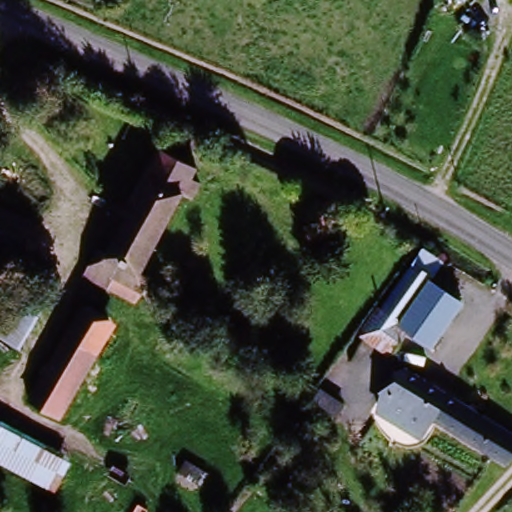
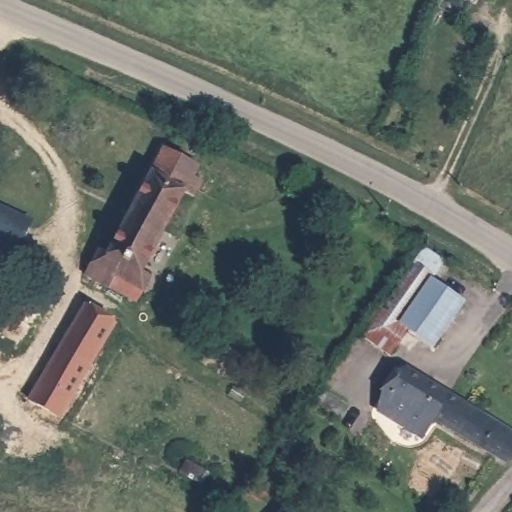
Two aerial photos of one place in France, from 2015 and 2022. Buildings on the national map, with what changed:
new [(450,0),(465,0),(462,5),(450,0)]
unchanged [(194,207),(180,199),(131,278),(145,287),(135,306),(72,268),(82,253),(95,262),(165,149),(167,144),(200,164),(200,165),(189,182),(204,190),(194,207)]
unchanged [(32,231),(22,255),(0,246),(0,218),(32,231)]
unchanged [(442,266),(430,285),(460,307),(445,329),(429,355),(387,327),(380,336),(366,325),(422,253),(442,266)]
unchanged [(49,308),(22,352),(0,341),(0,305),(10,288),(49,308)]
unchanged [(61,425),(27,406),(82,307),(106,321),(63,400),(72,405),(61,425)]
unchanged [(449,433),(436,425),(395,399),(410,374),(465,408),(480,416),(512,436),(512,472),(464,442),(449,433)]
unchanged [(395,399),(436,425),(425,443),(383,417),(395,399)]
new [(69,455),(67,460),(72,463),(57,493),(0,462),(0,418),(69,455)]
unchanged [(212,479),(201,500),(174,490),(189,465),(212,479)]
new [(282,509),(287,512),(280,512),(282,509)]

